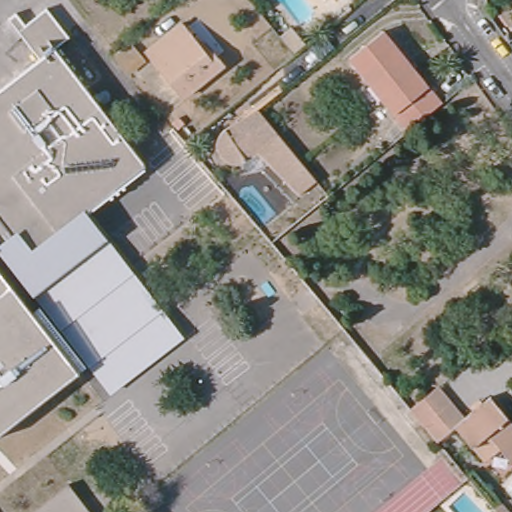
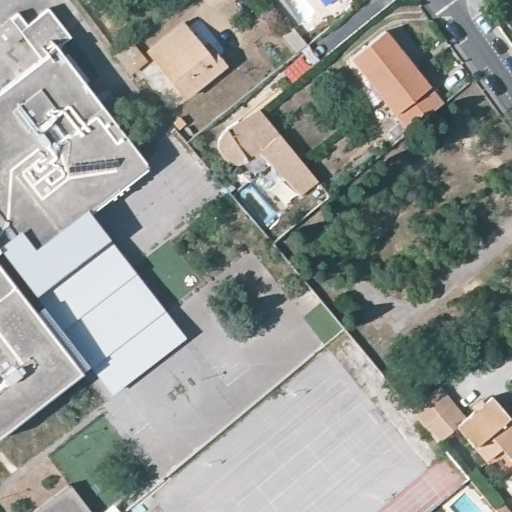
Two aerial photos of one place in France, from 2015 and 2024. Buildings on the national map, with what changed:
unchanged [(75,139),(39,165),(34,158),(0,183),(0,92),(39,62),(21,39),(8,49),(0,39),(0,29),(7,24),(6,21),(14,15),(25,27),(45,11),(68,40),(55,50),(144,165),(114,189),(75,139)]
unchanged [(185,21),(209,51),(214,47),(226,62),(186,93),(151,48),(185,21)]
unchanged [(296,50),(283,33),(295,24),(307,41),(296,50)]
unchanged [(365,65),(355,52),(382,30),(437,99),(388,139),(380,131),(395,118),(358,70),(365,65)]
unchanged [(144,54),(127,67),(116,54),(133,40),(144,54)]
unchanged [(244,160),(239,161),(234,161),(229,158),(224,155),(222,151),(221,147),(220,143),(221,138),(224,134),(227,130),(259,108),(315,180),(297,195),(260,151),(247,158),(244,160)]
unchanged [(34,158),(39,165),(75,139),(114,189),(128,207),(40,273),(13,237),(0,247),(0,183),(34,158)]
unchanged [(186,337),(111,396),(87,363),(78,371),(42,324),(0,269),(0,247),(13,237),(40,273),(100,228),(186,337)]
unchanged [(42,324),(78,371),(0,431),(0,269),(42,324)]
unchanged [(512,419),(512,461),(503,451),(488,463),(459,426),(438,442),(423,425),(410,410),(440,385),(452,401),(467,418),(493,396),(512,419)]
unchanged [(83,512),(36,512),(65,489),(83,512)]
unchanged [(496,512),(493,512),(495,510),(496,512)]

